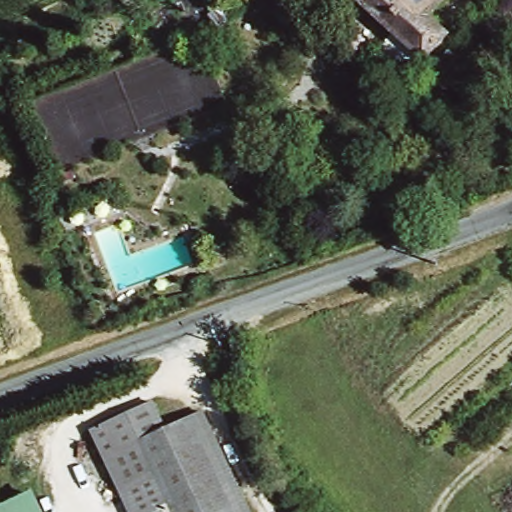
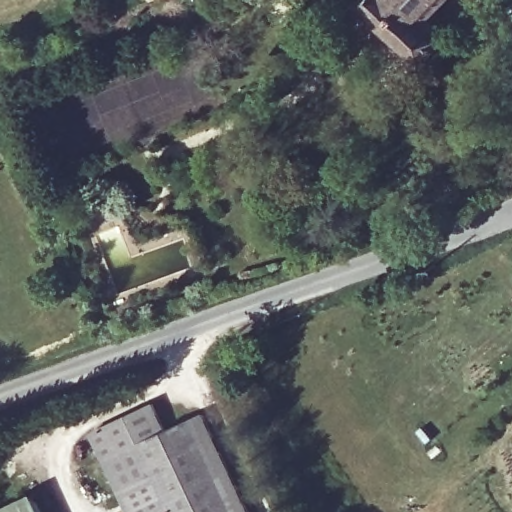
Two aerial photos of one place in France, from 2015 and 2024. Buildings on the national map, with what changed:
unchanged [(223,11),(242,0),(250,0),(256,9),(230,24),(223,11)]
unchanged [(429,62),(365,1),(366,0),(452,0),(436,17),(455,35),(429,62)]
unchanged [(251,512),(129,512),(90,435),(150,405),(164,432),(200,413),(251,512)]
unchanged [(24,495),(32,512),(0,512),(0,507),(24,495)]

